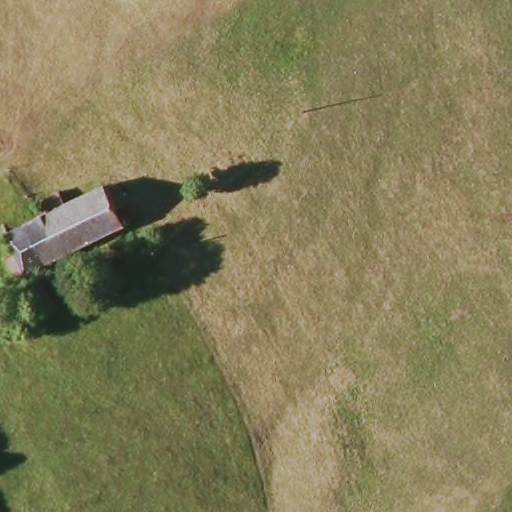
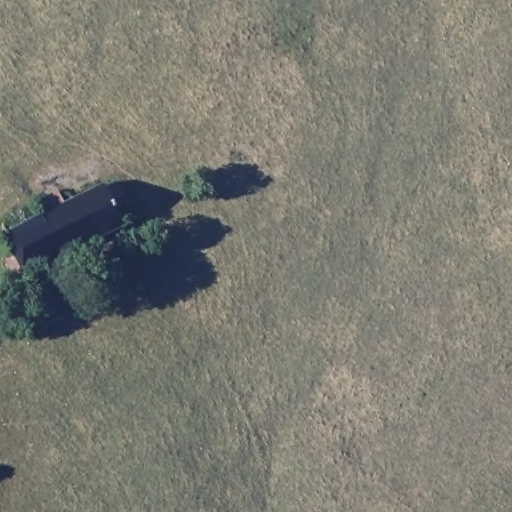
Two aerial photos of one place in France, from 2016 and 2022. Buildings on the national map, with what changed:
unchanged [(11,258),(0,237),(40,218),(35,207),(55,198),(62,208),(101,190),(103,194),(115,187),(125,208),(113,214),(120,229),(12,281),(2,262),(11,258)]

